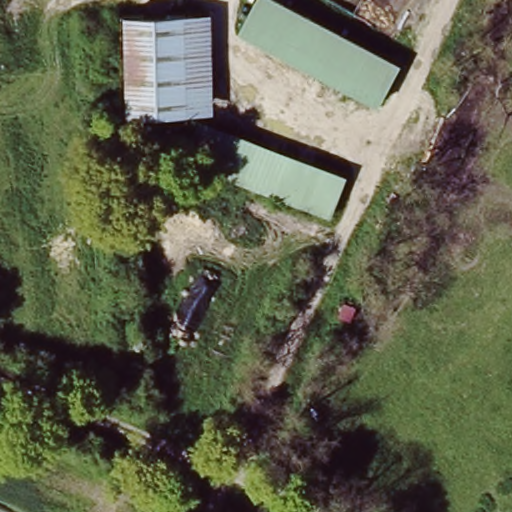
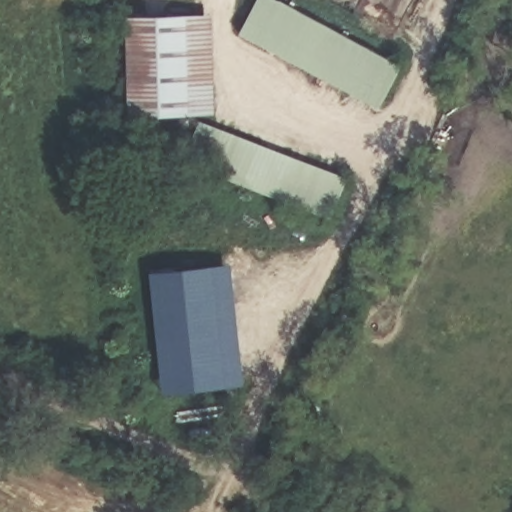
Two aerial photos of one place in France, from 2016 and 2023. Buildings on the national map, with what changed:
unchanged [(278,0),(400,74),(380,109),(245,30),(264,0),(278,0)]
unchanged [(130,18),(162,16),(220,13),(225,111),(135,116),(132,116),(127,19),(130,18)]
unchanged [(211,120),(350,187),(332,225),(193,156),(211,120)]
new [(162,392),(150,272),(231,263),(243,383),(162,392)]

